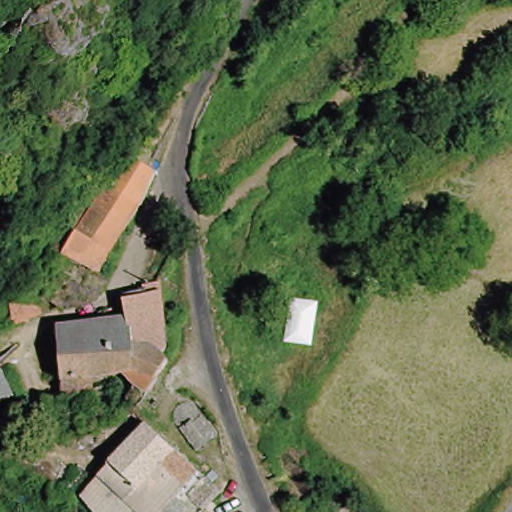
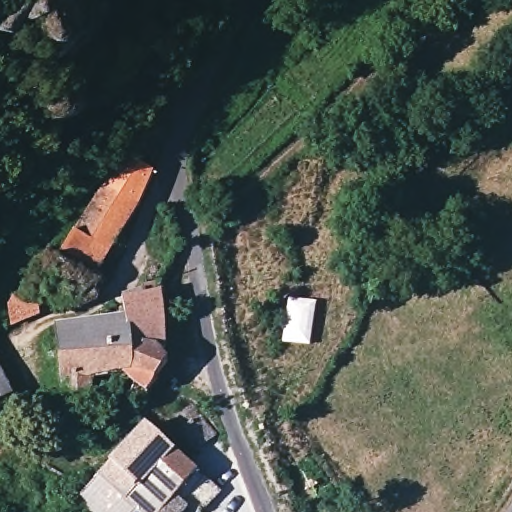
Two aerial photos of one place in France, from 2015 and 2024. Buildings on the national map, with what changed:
unchanged [(142,171),(148,174),(139,194),(133,207),(92,276),(57,255),(99,183),(118,157),(124,161),(142,171)]
unchanged [(126,391),(132,379),(123,372),(93,376),(92,388),(60,395),(58,390),(61,389),(58,380),(57,381),(53,328),(125,317),(123,299),(159,289),(163,332),(160,353),(165,356),(144,388),(136,401),(126,391)]
unchanged [(30,296),(37,314),(11,325),(8,304),(30,296)]
unchanged [(11,398),(0,404),(0,376),(11,398)]
unchanged [(168,408),(166,398),(179,388),(190,395),(213,421),(194,435),(168,408)]
unchanged [(210,482),(195,501),(181,490),(176,496),(188,504),(181,512),(93,512),(84,498),(108,467),(142,427),(197,471),(210,482)]

